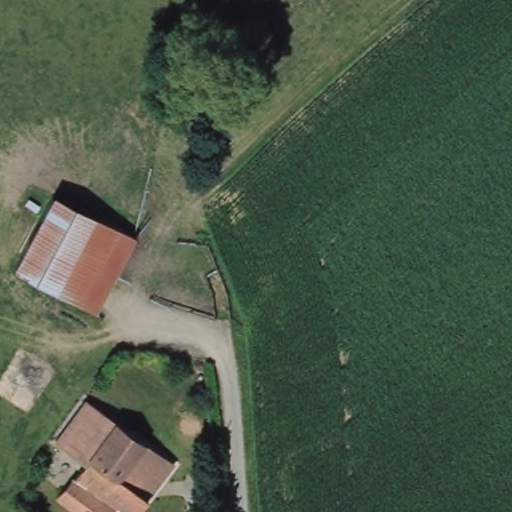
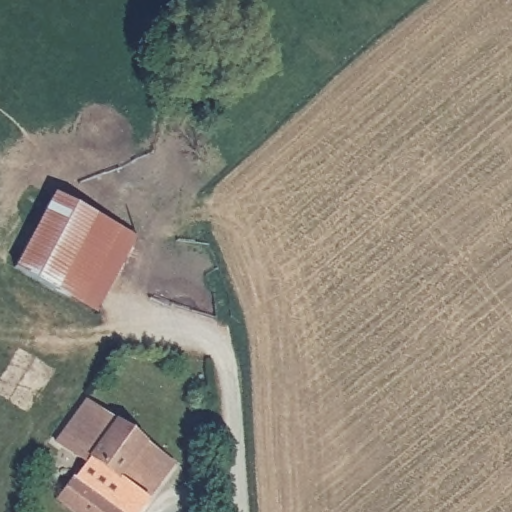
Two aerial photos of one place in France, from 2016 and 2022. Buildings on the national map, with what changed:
unchanged [(64,288),(20,266),(55,196),(98,219),(64,288)]
unchanged [(137,237),(104,306),(64,288),(98,219),(137,237)]
unchanged [(85,401),(174,466),(139,512),(75,512),(57,500),(71,480),(42,457),(85,401)]

